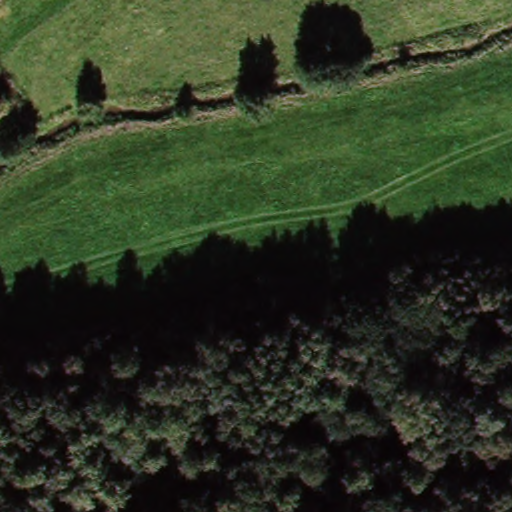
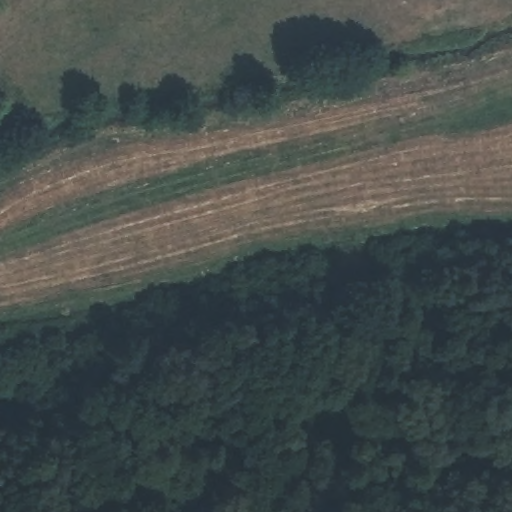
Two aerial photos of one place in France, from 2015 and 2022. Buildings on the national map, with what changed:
[]

